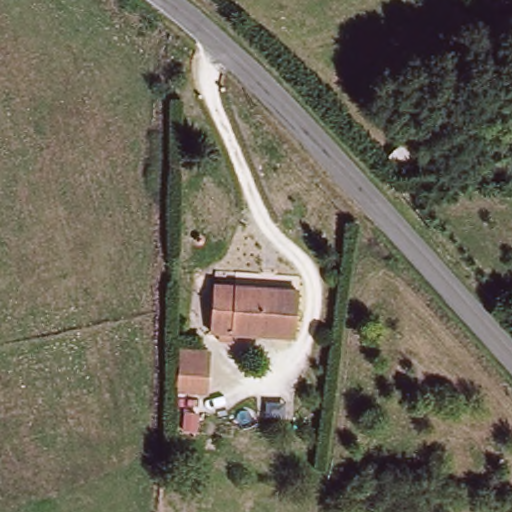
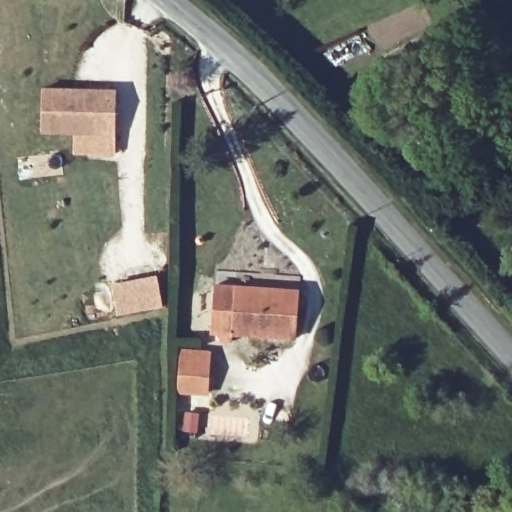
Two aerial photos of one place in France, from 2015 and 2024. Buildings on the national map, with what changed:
new [(118,89),(117,133),(42,131),(44,87),(118,89)]
new [(159,275),(165,306),(120,315),(113,285),(159,275)]
unchanged [(212,289),(297,299),(292,342),(209,334),(212,289)]
unchanged [(177,393),(179,360),(179,351),(207,354),(206,361),(205,394),(177,393)]

